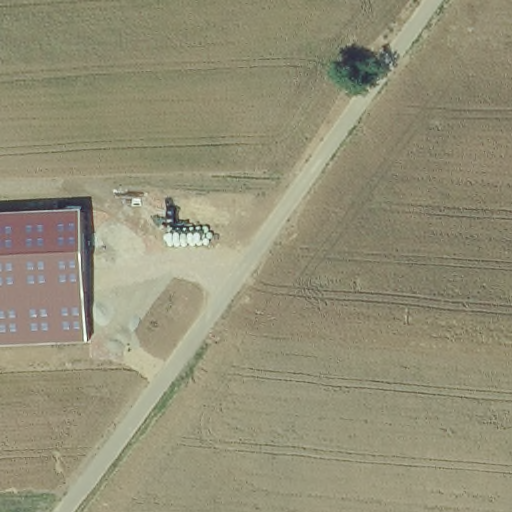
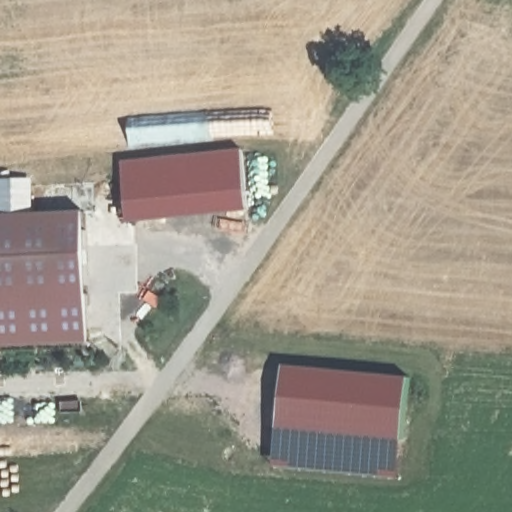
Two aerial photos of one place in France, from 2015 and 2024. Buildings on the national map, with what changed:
new [(239,144),(248,208),(126,219),(118,158),(239,144)]
unchanged [(91,342),(0,345),(0,215),(83,211),(91,342)]
new [(406,442),(279,429),(286,367),(411,377),(406,442)]

